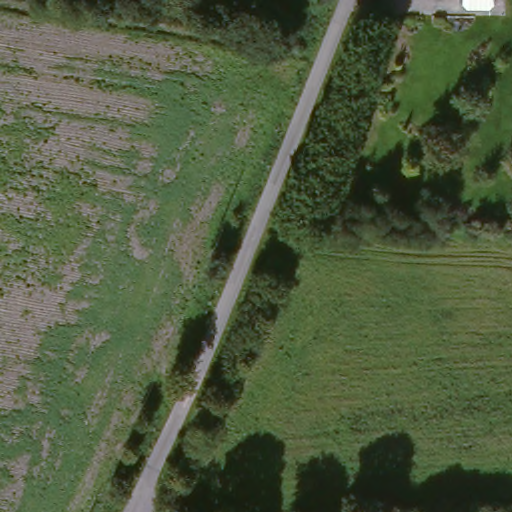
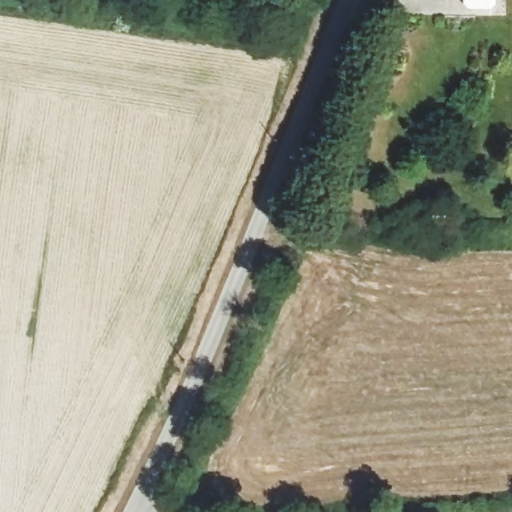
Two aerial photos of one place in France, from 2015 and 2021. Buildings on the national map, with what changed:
unchanged [(491,9),(468,10),(463,5),(463,0),(496,0),(496,4),(491,9)]

